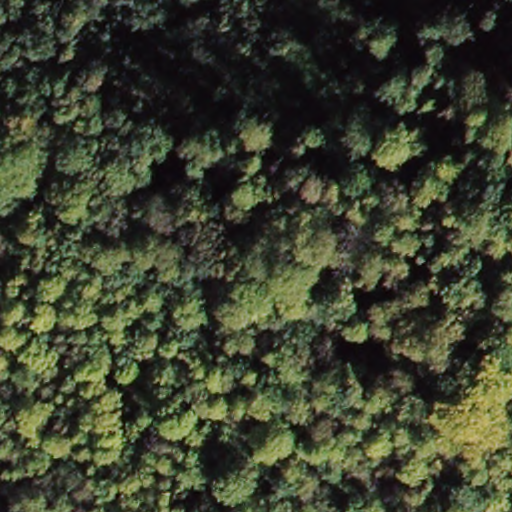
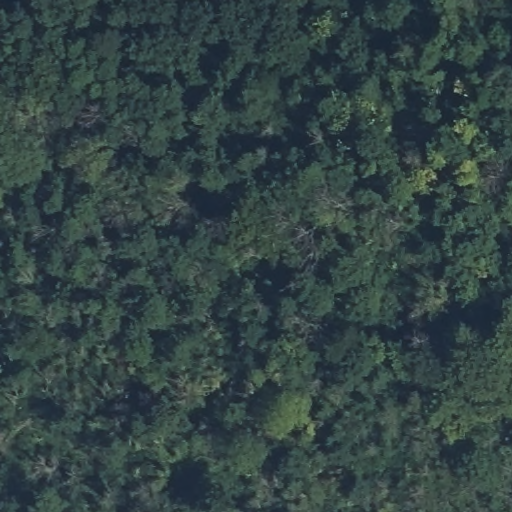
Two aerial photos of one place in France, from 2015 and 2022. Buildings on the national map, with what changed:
[]

